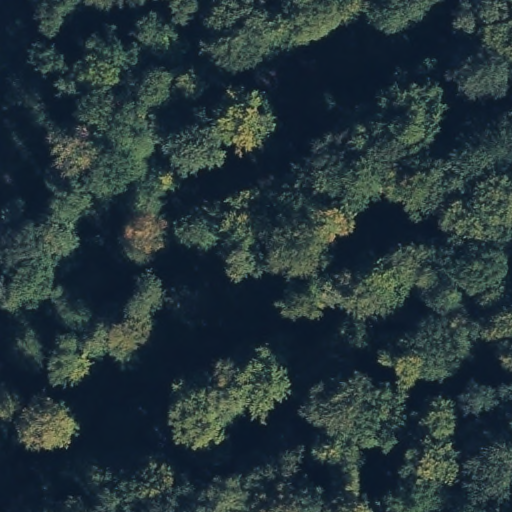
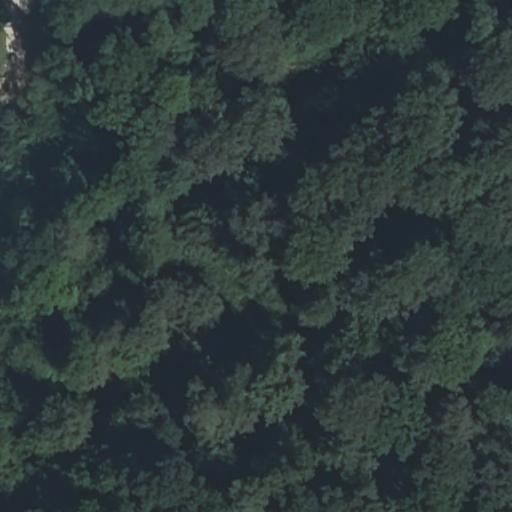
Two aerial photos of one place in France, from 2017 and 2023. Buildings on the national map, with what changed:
[]

